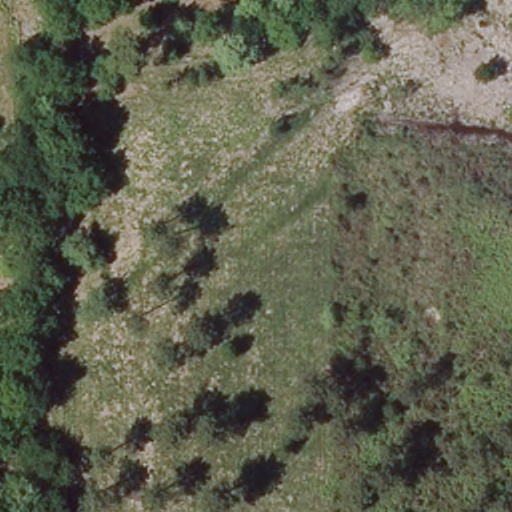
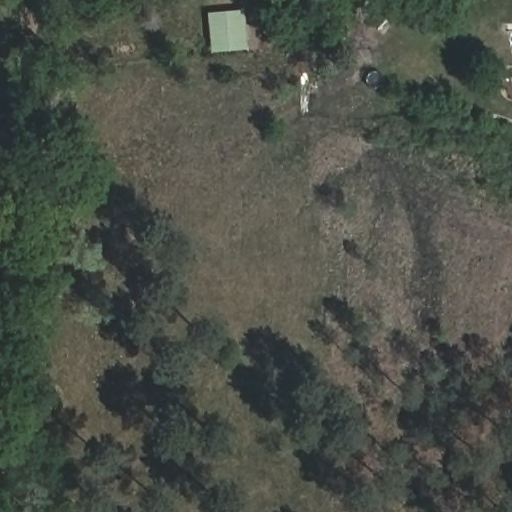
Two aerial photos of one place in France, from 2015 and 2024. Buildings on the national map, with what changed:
new [(247,50),(210,53),(208,13),(244,10),(247,50)]

